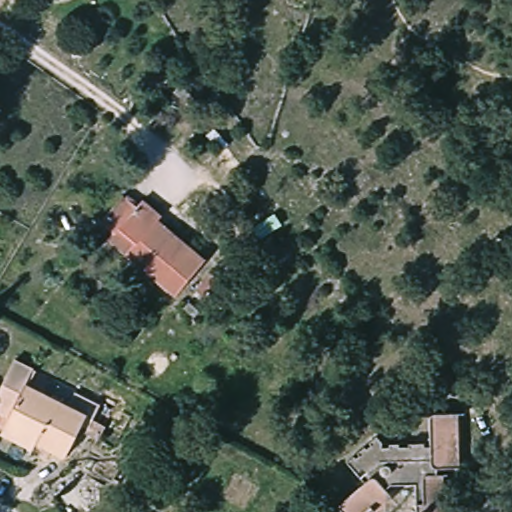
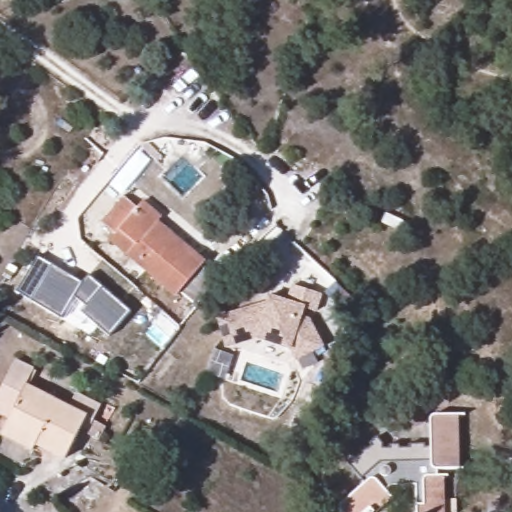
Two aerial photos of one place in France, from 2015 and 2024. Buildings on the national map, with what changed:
unchanged [(130,195),(143,206),(152,200),(168,215),(165,219),(184,239),(207,259),(177,288),(130,246),(115,233),(127,220),(114,207),(130,195)]
new [(52,265),(80,283),(87,275),(130,312),(108,337),(80,312),(85,306),(73,296),(60,318),(15,292),(37,257),(52,265)]
unchanged [(235,303),(226,295),(239,283),(247,290),(235,303)]
new [(265,304),(267,295),(288,300),(292,285),(322,295),(317,312),(305,308),(302,317),(308,318),(324,347),(313,353),(317,363),(303,371),(298,360),(295,362),(290,351),(257,340),(225,347),(215,317),(265,304)]
unchanged [(10,422),(0,417),(0,393),(17,358),(43,370),(39,383),(93,415),(67,468),(2,437),(10,422)]
unchanged [(392,485),(397,500),(385,512),(345,512),(340,506),(363,485),(344,462),(376,439),(432,438),(429,415),(454,414),(455,467),(449,466),(451,512),(416,512),(415,485),(392,485)]

